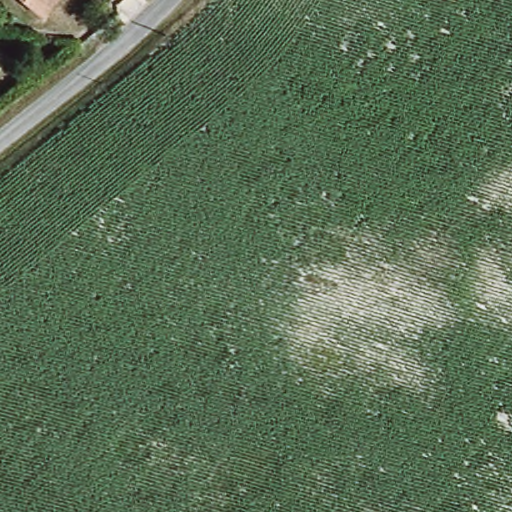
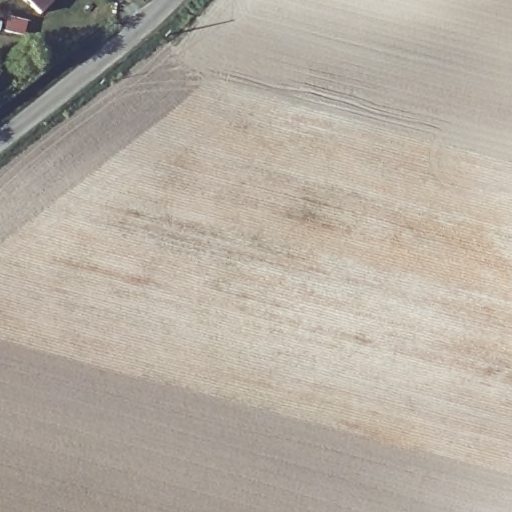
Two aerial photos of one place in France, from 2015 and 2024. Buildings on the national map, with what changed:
unchanged [(28,0),(56,0),(45,13),(28,0)]

